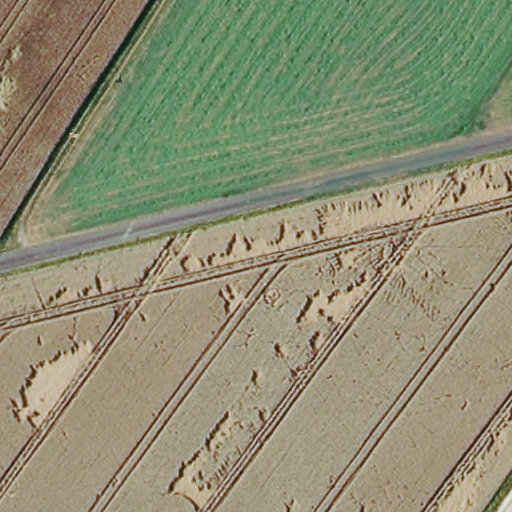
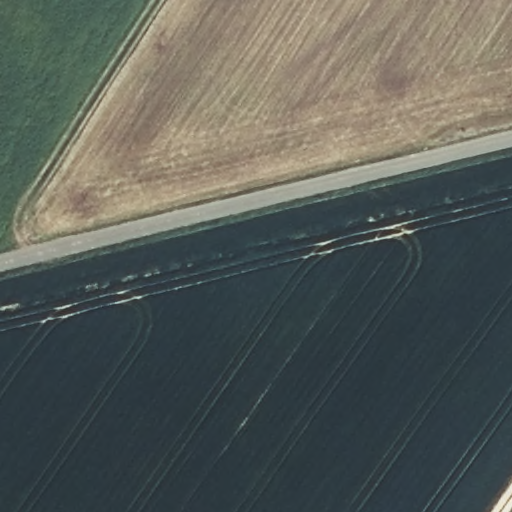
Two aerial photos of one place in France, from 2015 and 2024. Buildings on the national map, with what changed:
[]

